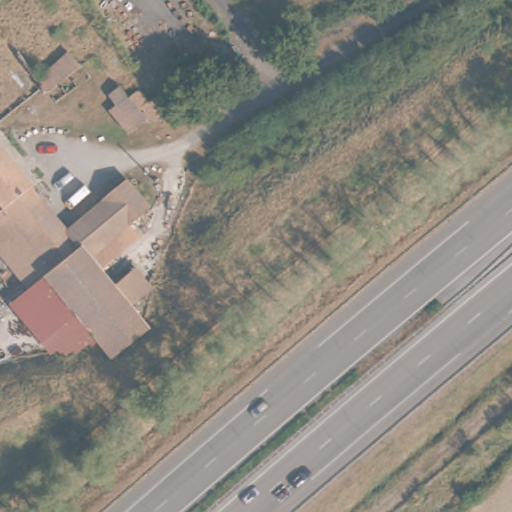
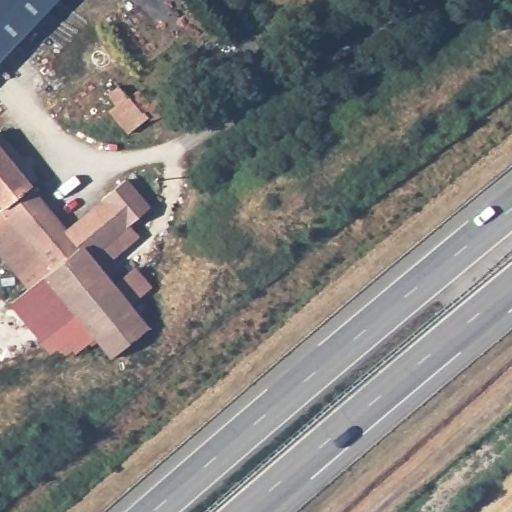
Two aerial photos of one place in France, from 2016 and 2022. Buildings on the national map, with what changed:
new [(0,0),(56,0),(0,60),(0,0)]
demolished [(66,52),(82,66),(49,92),(35,79),(66,52)]
unchanged [(110,110),(117,104),(109,94),(120,86),(129,96),(131,95),(132,94),(135,94),(137,93),(139,94),(141,94),(144,95),(145,96),(147,98),(148,99),(149,101),(150,102),(152,100),(164,113),(154,120),(150,116),(129,133),(110,110)]
unchanged [(45,276),(29,289),(0,254),(0,212),(4,209),(0,205),(0,146),(69,230),(128,180),(150,206),(90,256),(149,327),(112,357),(91,331),(45,276)]
unchanged [(45,276),(91,331),(58,357),(12,303),(29,289),(45,276)]

